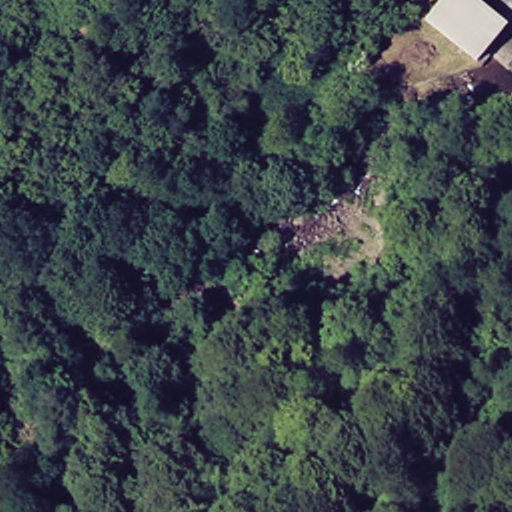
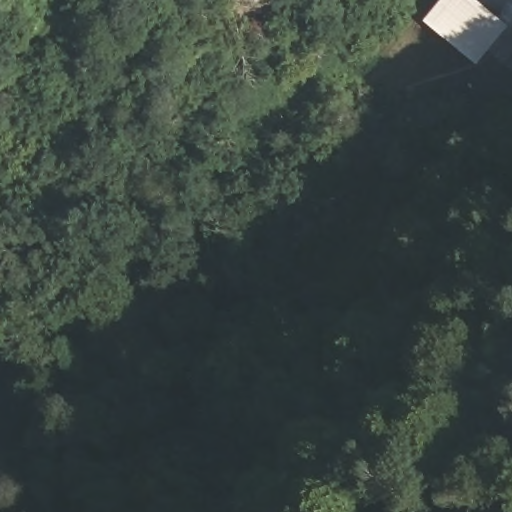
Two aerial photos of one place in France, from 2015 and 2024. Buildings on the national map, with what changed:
unchanged [(432,23),(453,0),(479,0),(507,24),(467,56),(432,23)]

